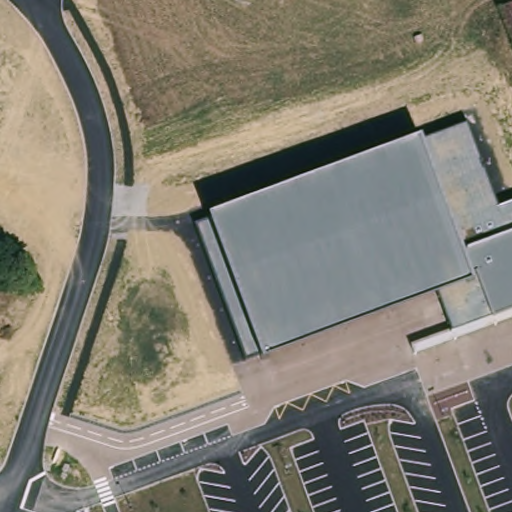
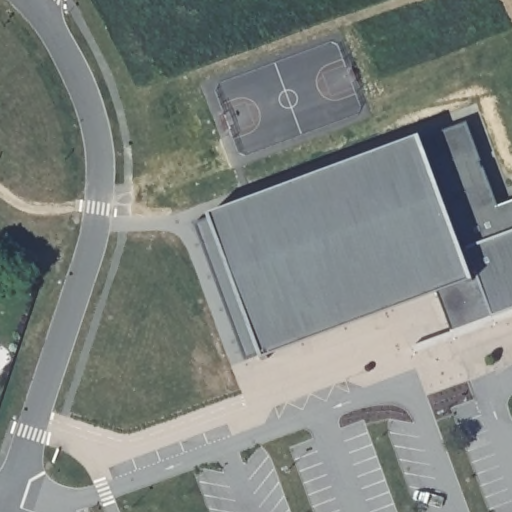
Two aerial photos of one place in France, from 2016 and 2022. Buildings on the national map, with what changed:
unchanged [(244,359),(195,225),(209,219),(420,139),(467,125),(498,207),(512,202),(512,320),(415,356),(412,347),(452,331),(436,295),(263,360),(261,353),(244,359)]

